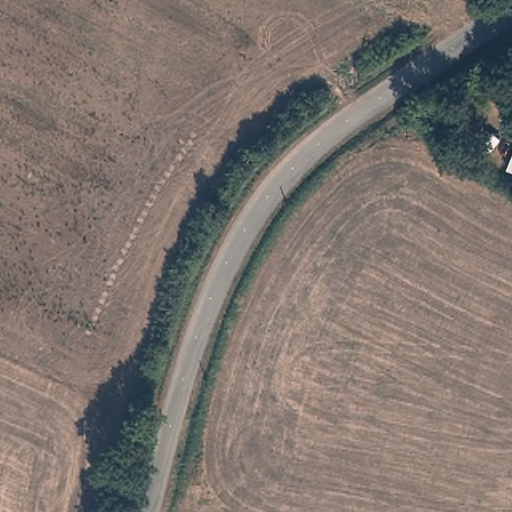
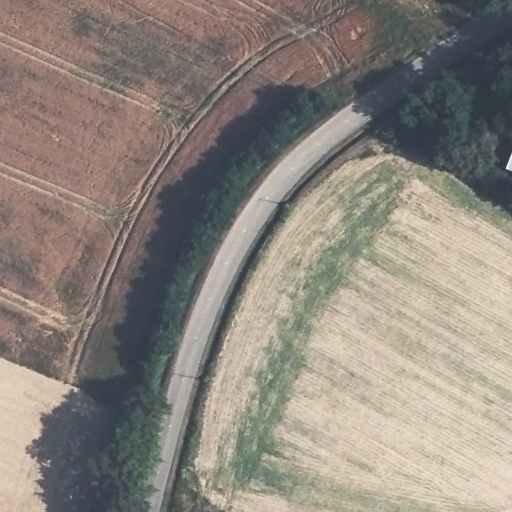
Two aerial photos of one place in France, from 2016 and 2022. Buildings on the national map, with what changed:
[]

